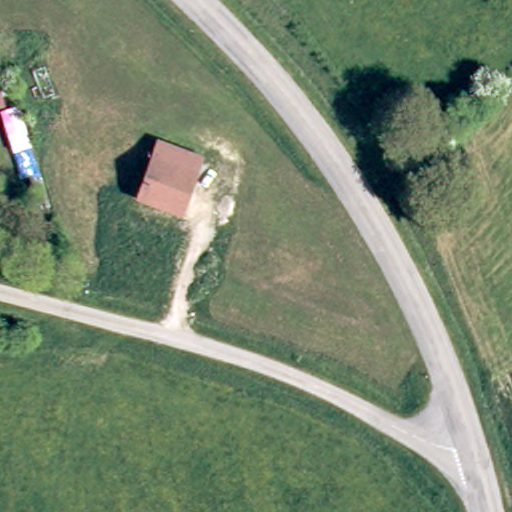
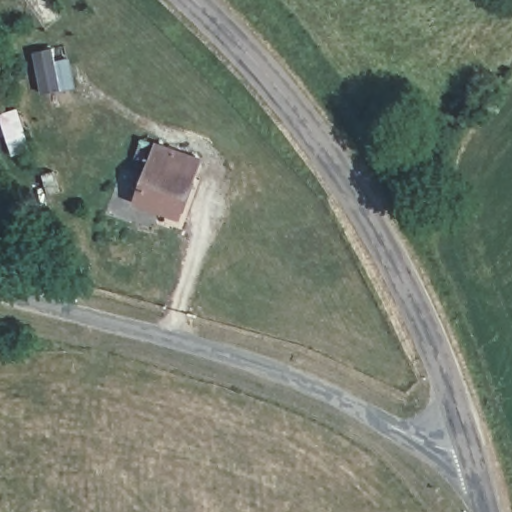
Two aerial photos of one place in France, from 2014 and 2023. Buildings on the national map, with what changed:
new [(54,50),(56,65),(69,62),(74,90),(43,97),(34,54),(54,50)]
unchanged [(203,155),(183,221),(134,202),(156,138),(203,155)]

